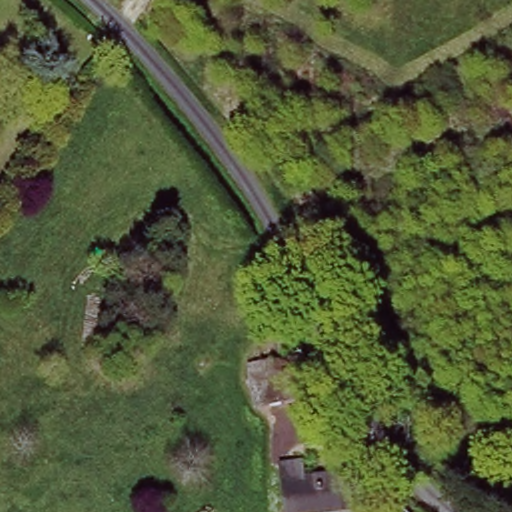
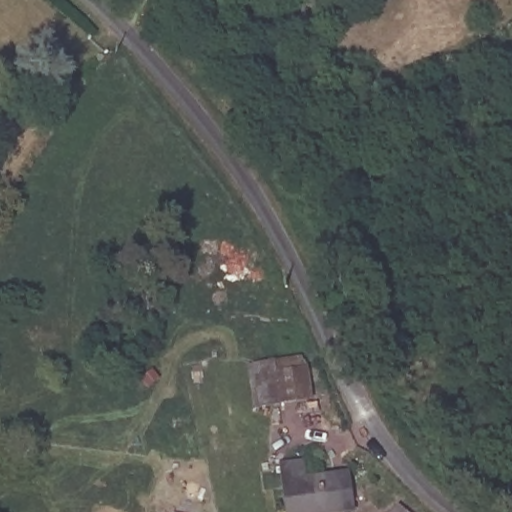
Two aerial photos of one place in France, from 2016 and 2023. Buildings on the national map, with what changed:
unchanged [(278,406),(273,377),(271,362),(302,357),(305,373),(309,402),(278,406)]
unchanged [(352,512),(288,512),(285,466),(303,465),(304,482),(348,477),(349,488),(352,512)]
unchanged [(401,512),(390,512),(394,506),(401,512)]

